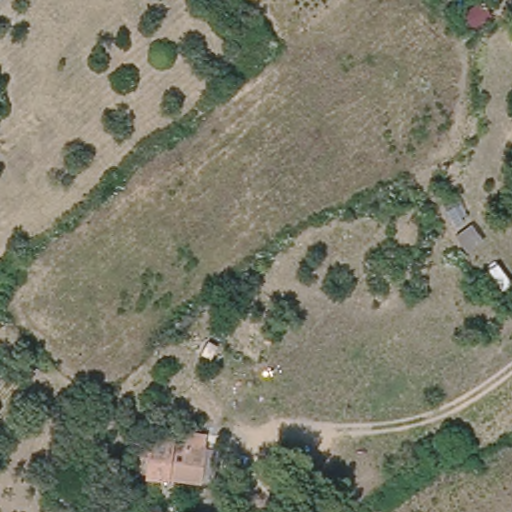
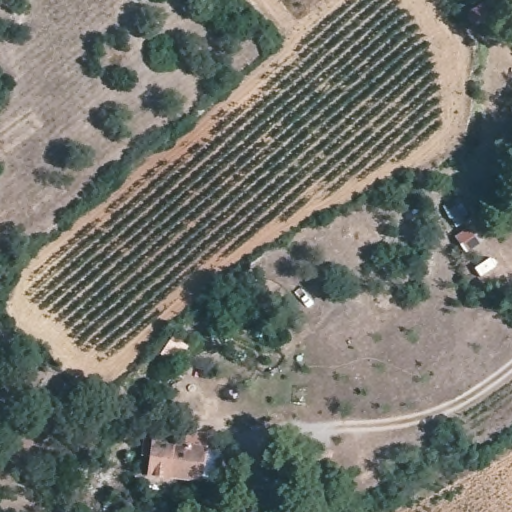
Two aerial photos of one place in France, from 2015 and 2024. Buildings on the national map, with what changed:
unchanged [(146,470),(148,451),(136,450),(138,435),(183,439),(183,431),(201,433),(200,441),(196,476),(146,470)]

